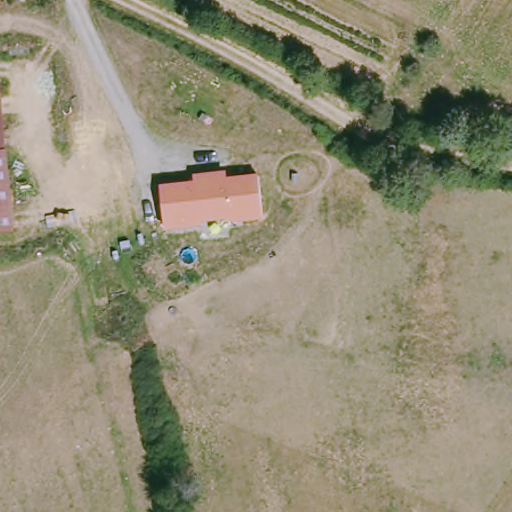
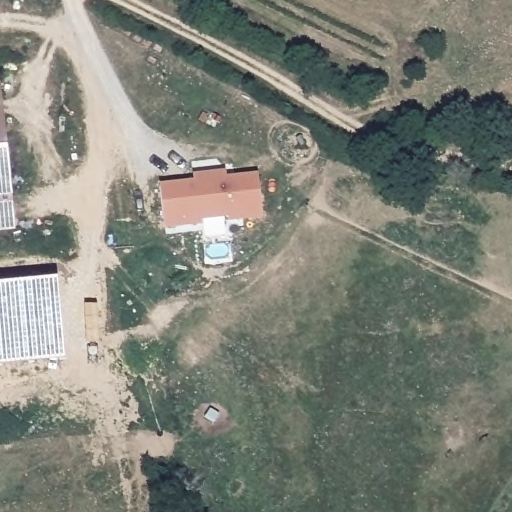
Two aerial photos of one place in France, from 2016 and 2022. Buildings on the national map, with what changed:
unchanged [(0,85),(14,227),(0,228),(0,85)]
unchanged [(193,180),(193,175),(226,171),(227,177),(258,175),(263,218),(226,222),(226,220),(201,223),(202,226),(165,229),(160,185),(193,180)]
new [(63,360),(0,366),(0,283),(55,278),(63,360)]

